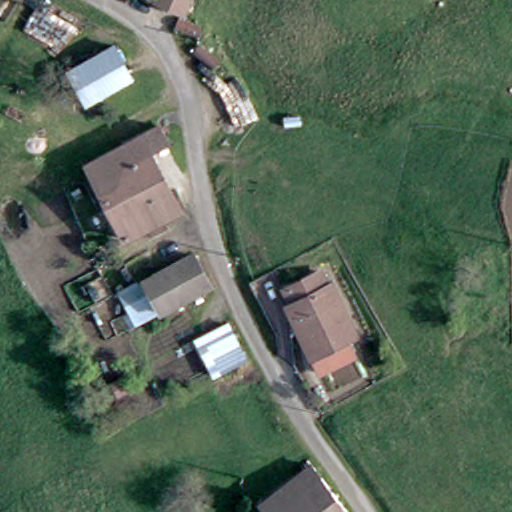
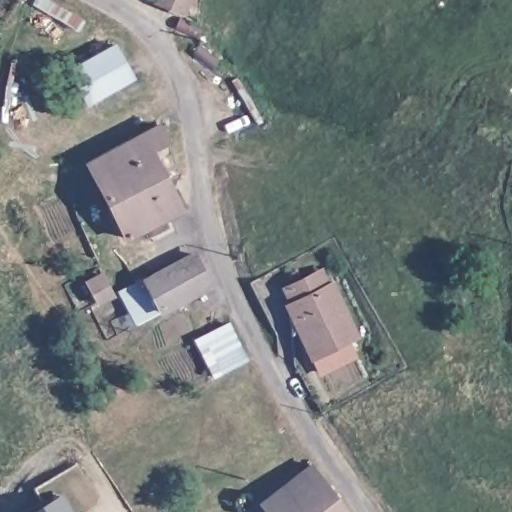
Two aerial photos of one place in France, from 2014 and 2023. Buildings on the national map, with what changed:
unchanged [(164,9),(167,0),(200,0),(191,22),(164,9)]
unchanged [(140,68),(97,93),(77,58),(121,33),(140,68)]
unchanged [(153,222),(135,229),(132,219),(114,227),(85,150),(159,120),(167,139),(147,146),(163,185),(169,183),(175,202),(171,203),(149,212),(153,222)]
unchanged [(142,319),(135,305),(140,303),(153,297),(143,275),(193,255),(210,289),(171,304),(160,309),(160,310),(142,319)]
unchanged [(320,371),(311,356),(296,330),(288,335),(286,323),(290,320),(282,307),(286,304),(279,290),(313,270),(321,284),(325,282),(353,330),(345,335),(353,351),(320,371)]
unchanged [(192,340),(223,320),(244,353),(213,373),(192,340)]
unchanged [(262,507),(311,467),(346,512),(266,512),(262,507)]
new [(63,491),(74,512),(28,512),(63,491)]

